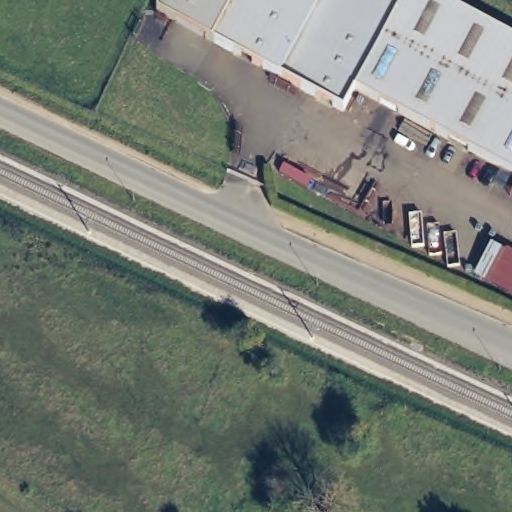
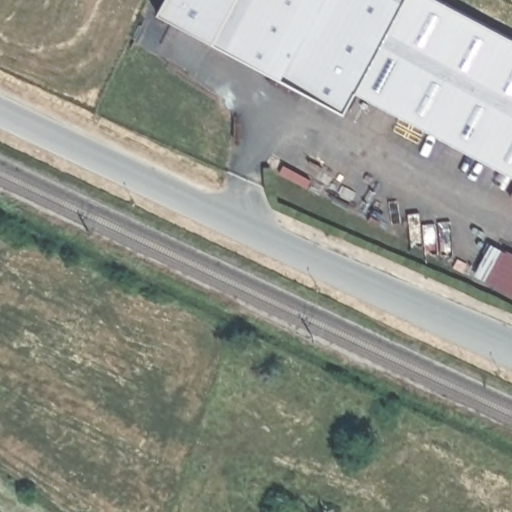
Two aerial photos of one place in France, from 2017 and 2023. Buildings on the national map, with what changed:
unchanged [(231,28),(222,42),(158,11),(164,0),(452,0),(512,32),(512,177),(231,28)]
unchanged [(512,252),(512,299),(477,279),(496,243),(512,252)]

